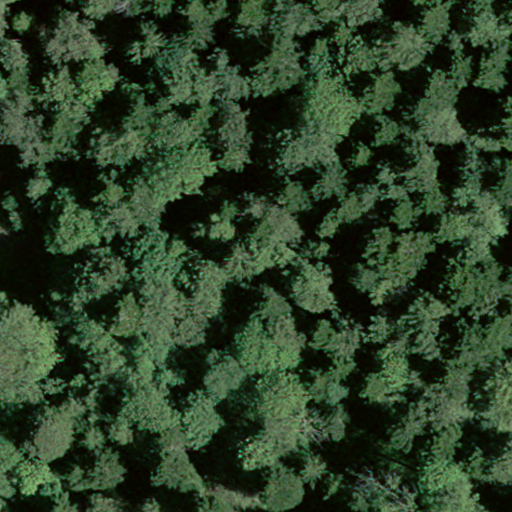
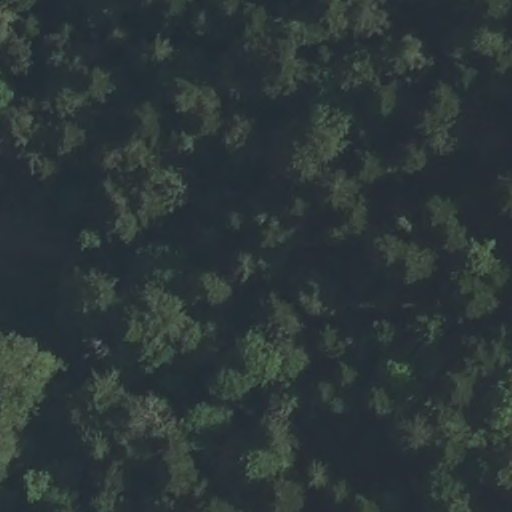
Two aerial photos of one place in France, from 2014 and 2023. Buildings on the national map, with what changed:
unchanged [(0,189),(0,168),(7,171),(0,189)]

